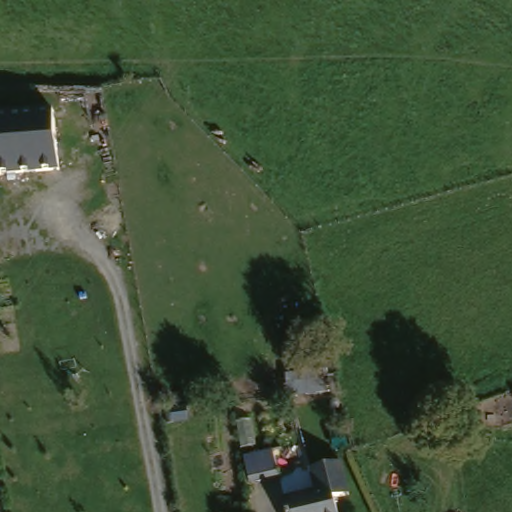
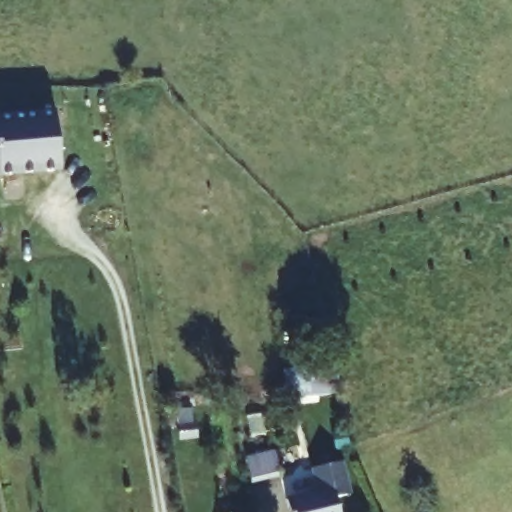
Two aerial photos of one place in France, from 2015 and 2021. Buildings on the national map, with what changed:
unchanged [(0,121),(56,114),(65,174),(2,182),(0,169),(0,121)]
unchanged [(0,169),(2,182),(0,182),(0,169)]
unchanged [(280,443),(283,468),(255,473),(250,448),(280,443)]
unchanged [(309,473),(342,467),(348,499),(332,502),(334,512),(282,512),(281,502),(312,496),(309,473)]

